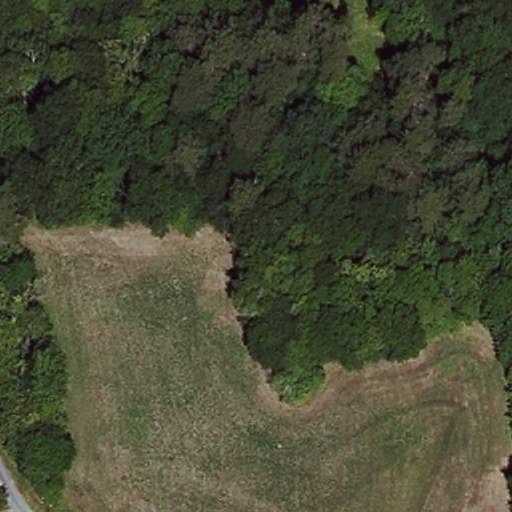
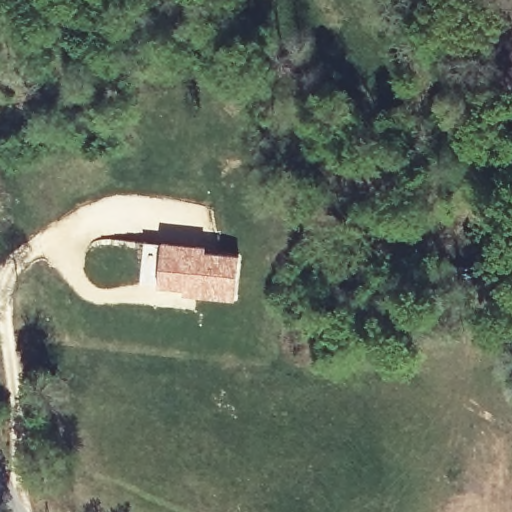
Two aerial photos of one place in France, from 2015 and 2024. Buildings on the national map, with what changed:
new [(203,249),(202,256),(240,258),(235,298),(184,292),(184,287),(157,285),(162,245),(203,249)]

